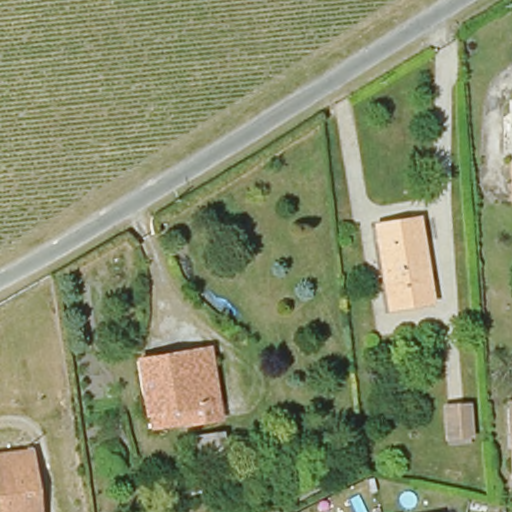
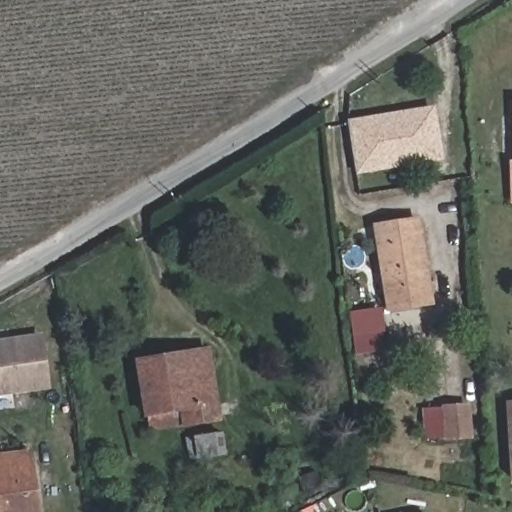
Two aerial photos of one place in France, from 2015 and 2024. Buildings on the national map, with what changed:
new [(357,174),(348,121),(436,105),(444,160),(357,174)]
unchanged [(431,304),(389,312),(375,227),(417,220),(431,304)]
new [(0,395),(0,339),(43,333),(52,388),(0,395)]
unchanged [(145,417),(137,365),(156,363),(207,354),(208,363),(216,407),(218,423),(183,428),(183,426),(151,431),(149,416),(145,417)]
unchanged [(445,411),(469,408),(471,440),(447,441),(445,411)]
unchanged [(228,457),(199,461),(194,438),(225,434),(228,457)]
unchanged [(37,512),(0,512),(0,456),(28,452),(37,512)]

